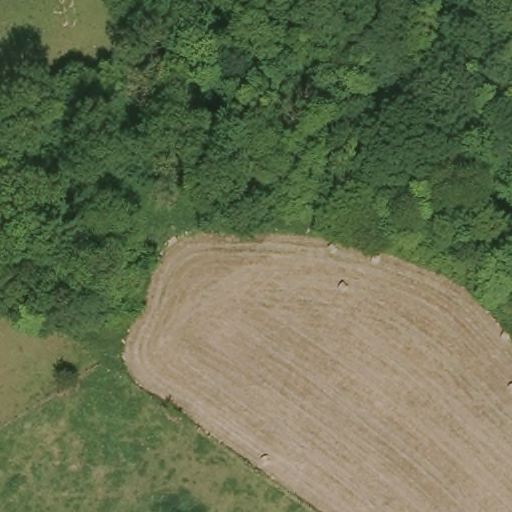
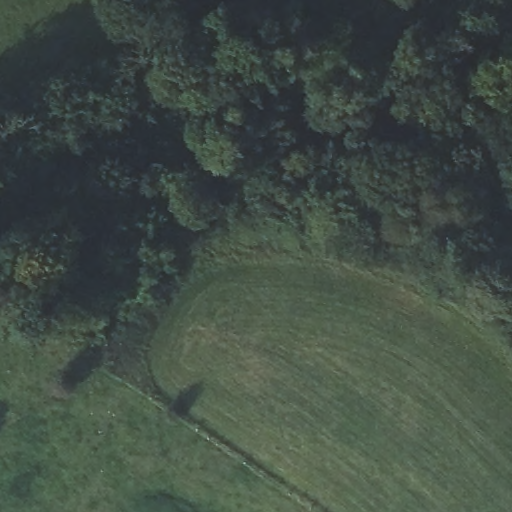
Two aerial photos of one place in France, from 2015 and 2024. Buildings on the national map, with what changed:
[]

